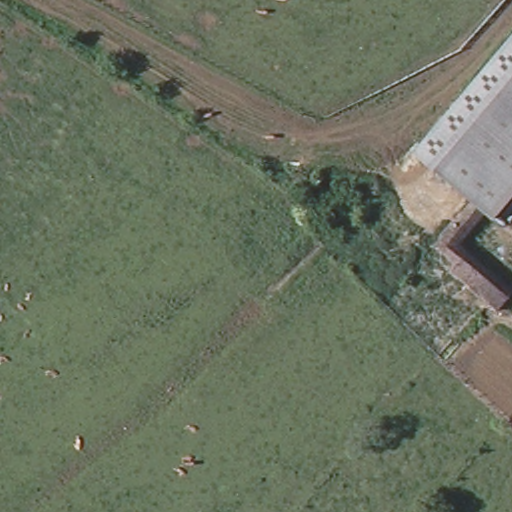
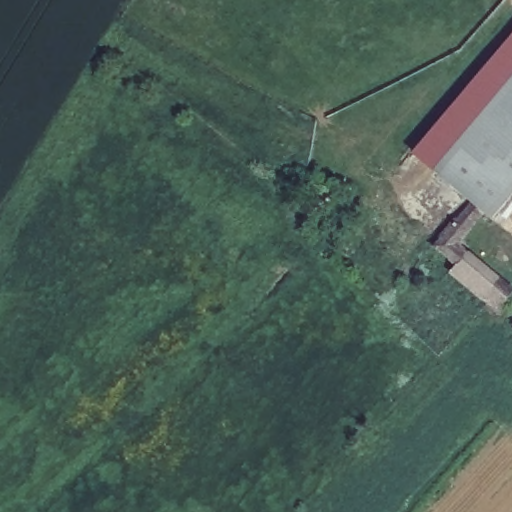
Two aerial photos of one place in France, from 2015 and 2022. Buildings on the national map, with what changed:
unchanged [(400,147),(512,22),(512,60),(420,165),(400,147)]
unchanged [(420,165),(512,60),(512,178),(479,217),(474,213),(455,195),(420,165)]
unchanged [(455,195),(474,213),(447,243),(496,287),(479,306),(430,264),(436,255),(417,239),(455,195)]
unchanged [(440,344),(450,333),(461,342),(452,353),(440,344)]

